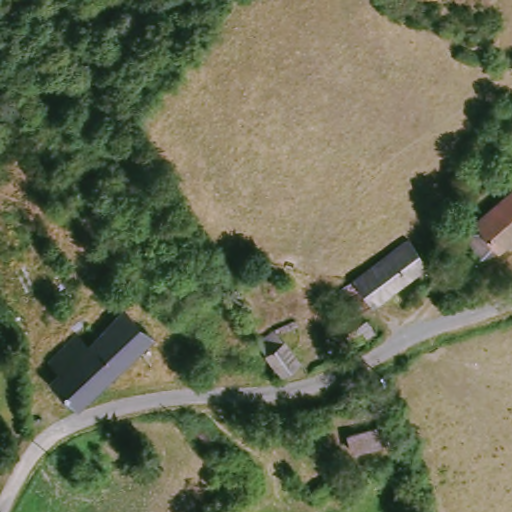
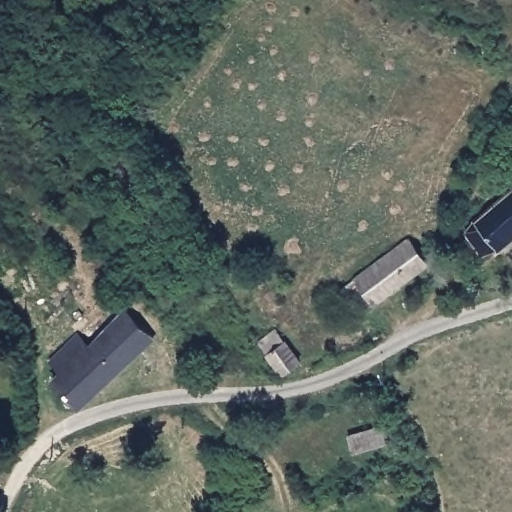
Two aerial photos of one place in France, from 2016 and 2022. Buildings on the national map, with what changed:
unchanged [(512,197),(512,238),(492,255),(489,251),(480,258),(470,241),(468,234),(512,197)]
unchanged [(420,240),(440,265),(382,305),(379,302),(367,311),(350,288),(420,240)]
unchanged [(58,370),(47,362),(75,333),(87,344),(125,308),(154,337),(78,409),(48,380),(58,370)]
unchanged [(358,325),(365,337),(352,345),(345,331),(358,325)]
unchanged [(277,330),(298,363),(282,374),(261,340),(277,330)]
unchanged [(385,425),(392,446),(357,457),(350,436),(385,425)]

